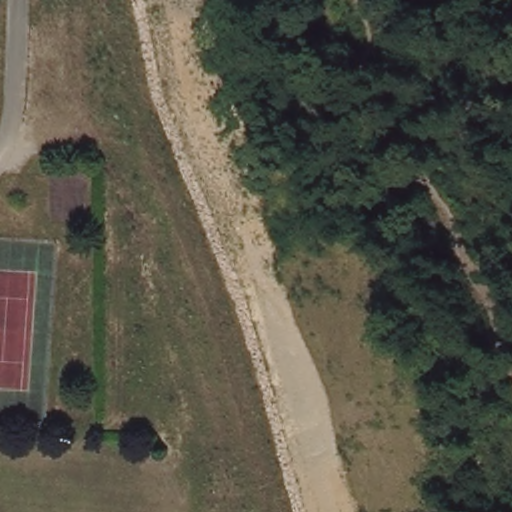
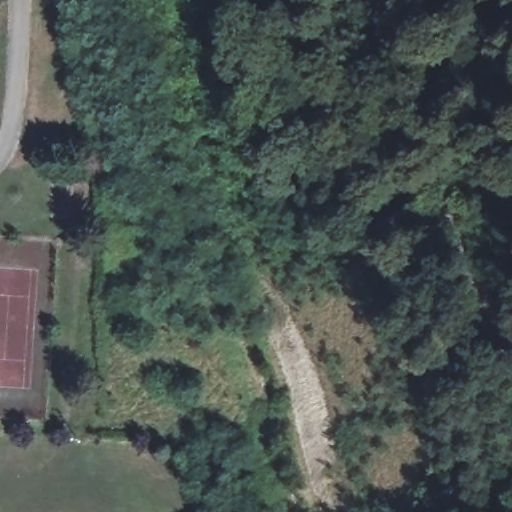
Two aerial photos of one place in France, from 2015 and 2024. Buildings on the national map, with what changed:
[]

